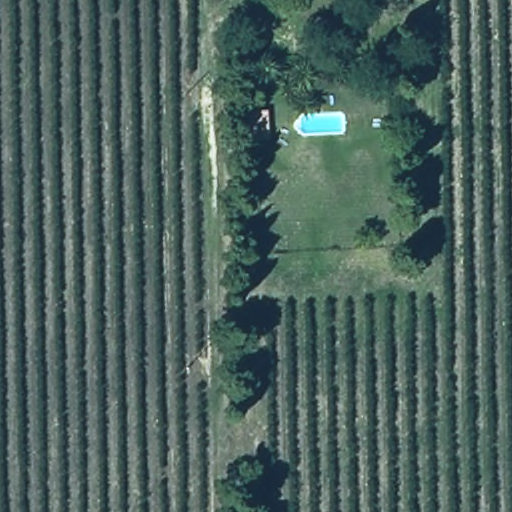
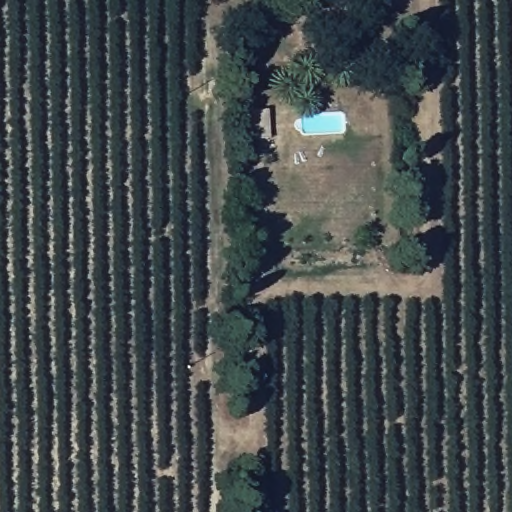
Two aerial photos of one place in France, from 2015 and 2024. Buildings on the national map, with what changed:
unchanged [(267,141),(249,141),(249,111),(267,111),(267,141)]

